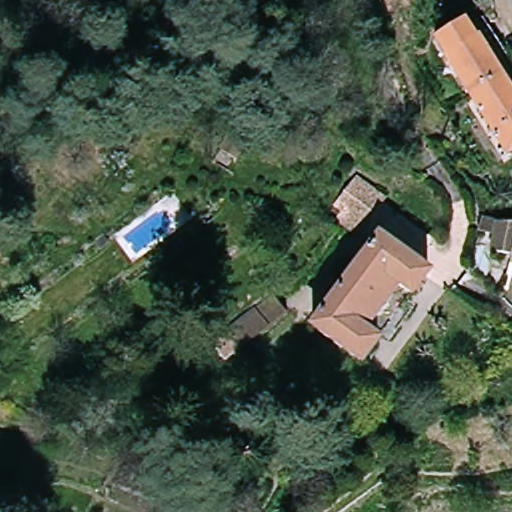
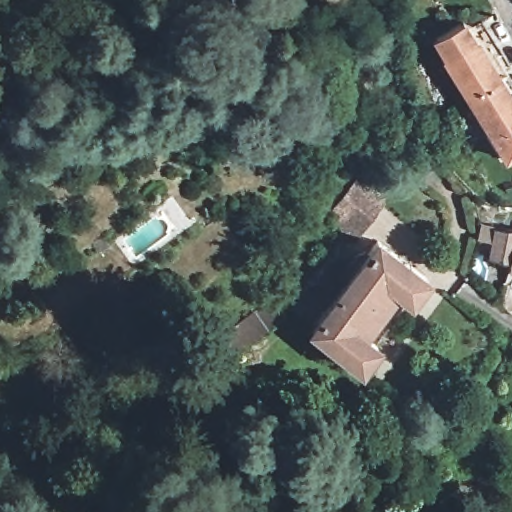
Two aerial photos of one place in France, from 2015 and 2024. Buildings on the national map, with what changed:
unchanged [(264,1),(221,9),(221,0),(264,0),(264,1)]
unchanged [(512,87),(512,150),(497,155),(462,101),(430,54),(473,30),(506,80),(512,87)]
unchanged [(327,210),(357,177),(387,203),(354,235),(327,210)]
unchanged [(470,227),(512,221),(512,288),(503,288),(503,265),(471,265),(470,227)]
unchanged [(369,338),(353,355),(310,315),(381,239),(423,278),(407,300),(394,291),(360,327),(369,338)]
unchanged [(212,347),(273,293),(287,308),(227,363),(212,347)]

